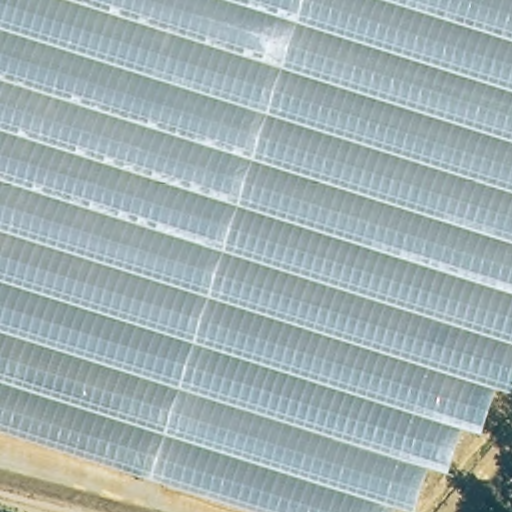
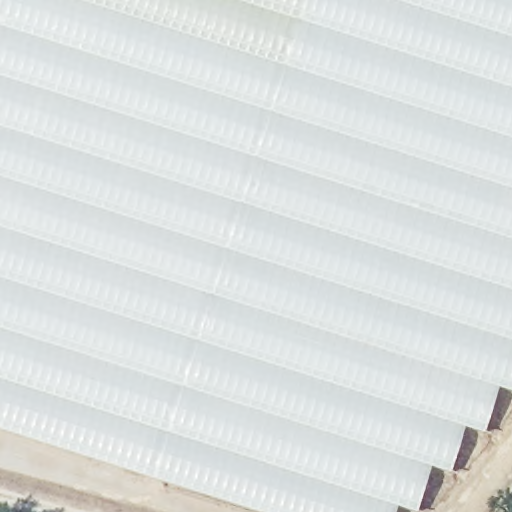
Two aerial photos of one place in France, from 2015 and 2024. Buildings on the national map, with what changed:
unchanged [(0,429),(0,0),(512,0),(512,399),(414,512),(263,512),(0,429)]

